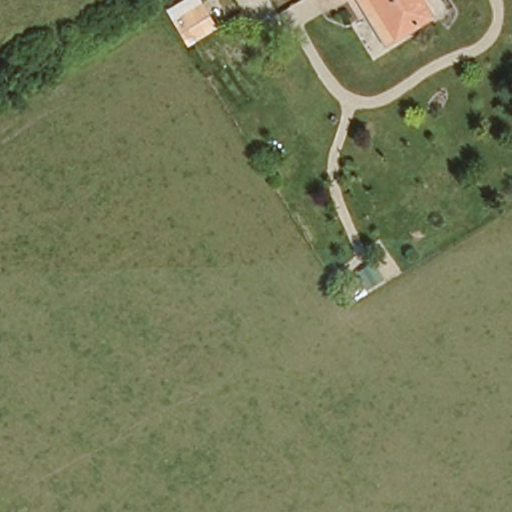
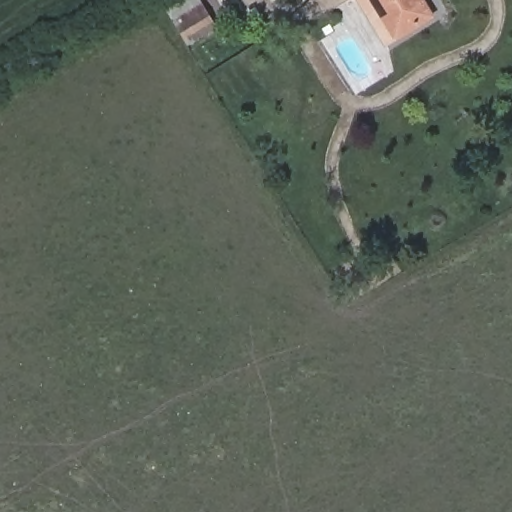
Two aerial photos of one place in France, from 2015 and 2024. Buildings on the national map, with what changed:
unchanged [(187,23),(181,14),(205,0),(211,0),(214,6),(229,31),(201,46),(187,23)]
unchanged [(383,39),(364,6),(360,0),(421,0),(428,11),(383,39)]

